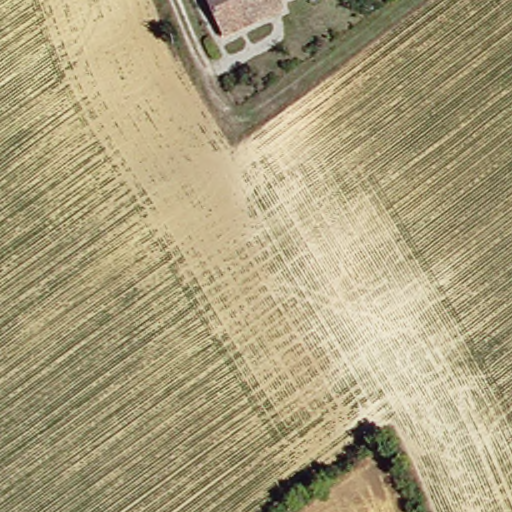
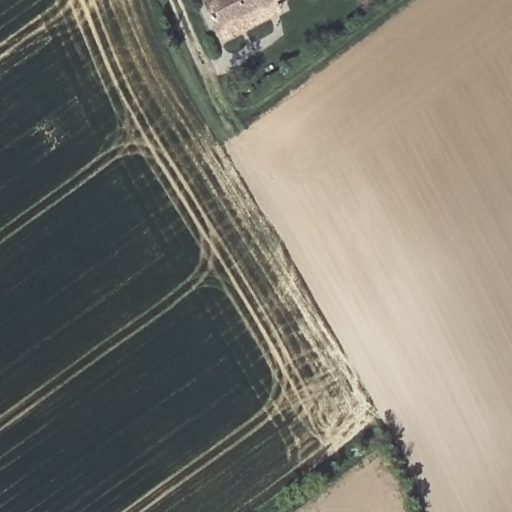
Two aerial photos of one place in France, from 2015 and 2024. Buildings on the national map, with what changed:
unchanged [(231,37),(224,25),(212,0),(279,0),(269,4),(275,17),(231,37)]

